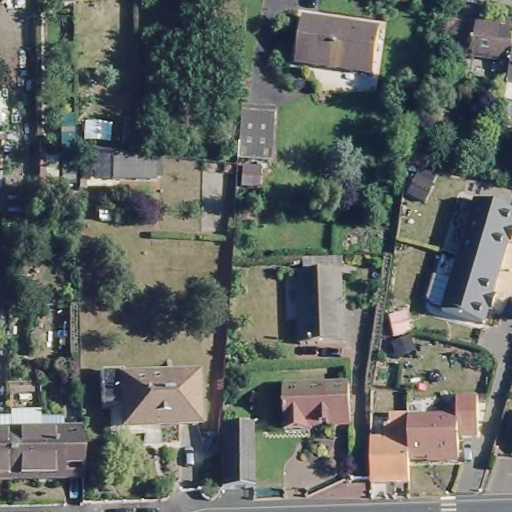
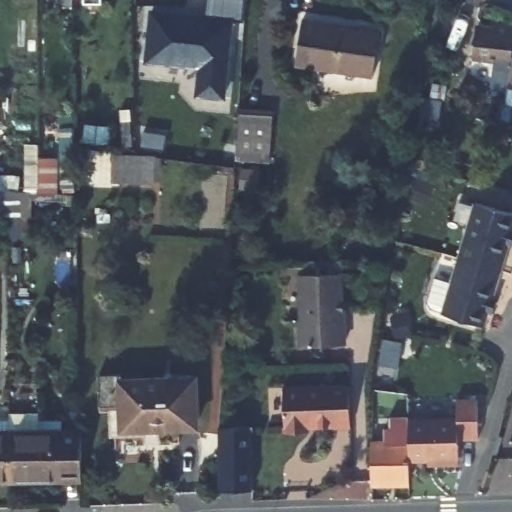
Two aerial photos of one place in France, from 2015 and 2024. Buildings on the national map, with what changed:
new [(236,20),(226,99),(195,96),(199,69),(146,62),(151,8),(206,15),(208,0),(245,0),(244,21),(236,20)]
unchanged [(308,67),(296,64),(303,20),(349,28),(347,38),(342,72),(308,67)]
unchanged [(508,52),(469,49),(471,29),(485,30),(487,20),(510,22),(509,38),(512,39),(512,100),(507,99),(506,99),(510,83),(502,81),(508,52)]
unchanged [(381,34),(374,77),(342,72),(347,38),(349,28),(381,34)]
unchanged [(243,119),(273,122),(269,161),(241,160),(243,119)]
unchanged [(162,154),(163,185),(113,187),(113,156),(162,154)]
unchanged [(33,245),(6,246),(5,217),(0,217),(0,190),(33,194),(33,245)]
unchanged [(486,198),(512,206),(512,234),(503,263),(473,254),(462,250),(479,196),(486,198)]
unchanged [(473,254),(503,263),(486,318),(459,310),(444,305),(462,250),(473,254)]
unchanged [(343,267),(341,339),(299,338),(300,313),(303,313),(306,267),(343,267)]
unchanged [(199,376),(198,425),(123,423),(124,376),(199,376)]
unchanged [(286,386),(349,387),(348,427),(306,425),(306,428),(284,428),(284,401),(286,386)]
unchanged [(372,392),(391,392),(391,432),(372,432),(372,392)]
unchanged [(13,484),(13,478),(12,435),(11,431),(11,418),(41,417),(42,433),(83,432),(85,483),(13,484)]
unchanged [(411,445),(411,438),(412,417),(461,417),(461,458),(411,458),(411,445)]
unchanged [(217,492),(216,429),(247,430),(248,492),(217,492)]
unchanged [(0,435),(12,435),(13,478),(13,484),(0,484),(0,435)]
unchanged [(411,458),(411,482),(372,482),(372,451),(372,438),(411,438),(411,445),(411,458)]

